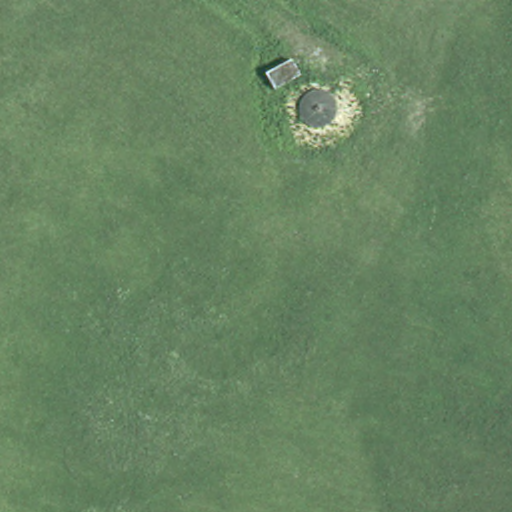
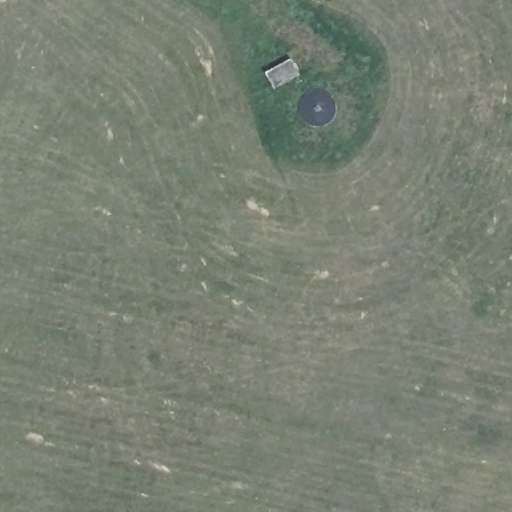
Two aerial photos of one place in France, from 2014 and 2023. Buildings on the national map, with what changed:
unchanged [(297,59),(307,77),(277,92),(268,74),(297,59)]

